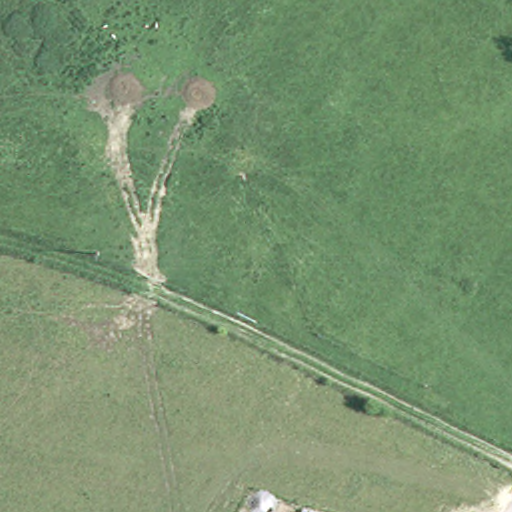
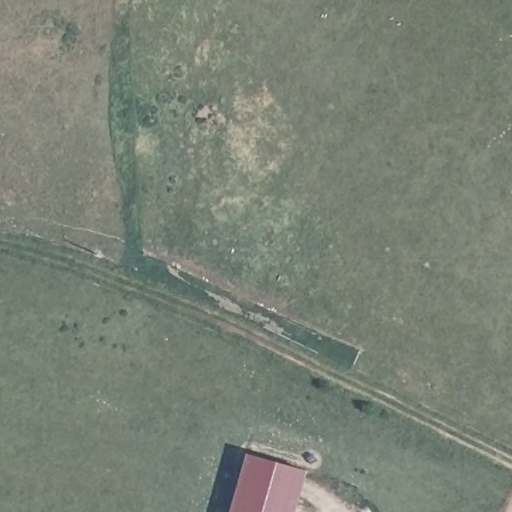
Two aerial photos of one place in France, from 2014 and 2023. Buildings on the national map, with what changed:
new [(247,454),(308,471),(297,512),(231,512),(247,454)]

